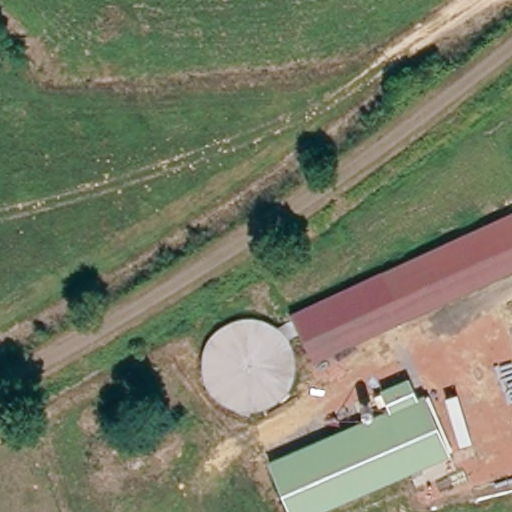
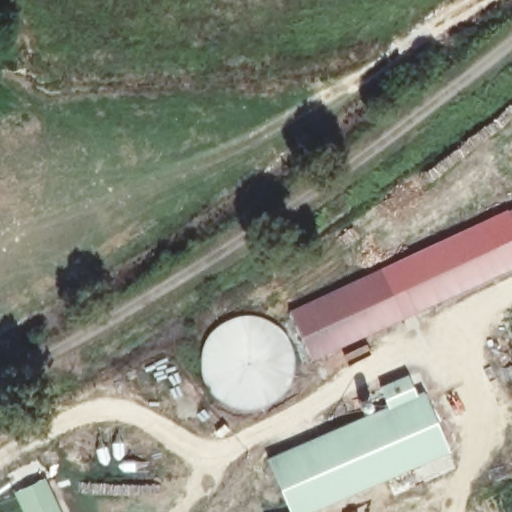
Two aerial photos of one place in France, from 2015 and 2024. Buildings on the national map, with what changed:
unchanged [(314,357),(293,312),(411,258),(512,212),(512,266),(483,279),(391,322),(314,357)]
unchanged [(232,409),(221,406),(212,397),(206,386),(205,366),(212,342),(233,324),(258,319),(278,327),(290,340),(296,361),(295,385),(286,401),(277,407),(263,411),(250,414),(232,409)]
unchanged [(267,457),(386,407),(378,386),(407,374),(417,397),(423,394),(447,453),(313,512),(290,512),(267,457)]
new [(60,512),(24,512),(16,494),(45,480),(60,512)]

